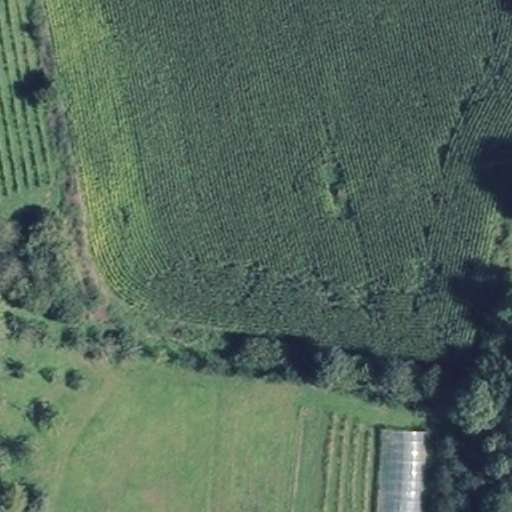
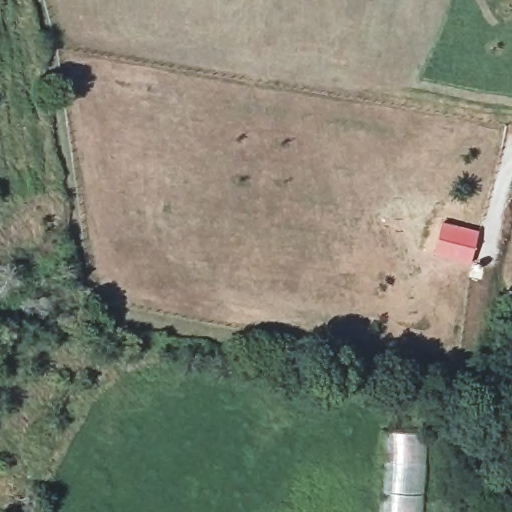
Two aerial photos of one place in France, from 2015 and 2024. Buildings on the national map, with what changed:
new [(479,231),(470,266),(432,256),(441,221),(479,231)]
unchanged [(386,433),(429,435),(424,512),(382,512),(386,433)]

